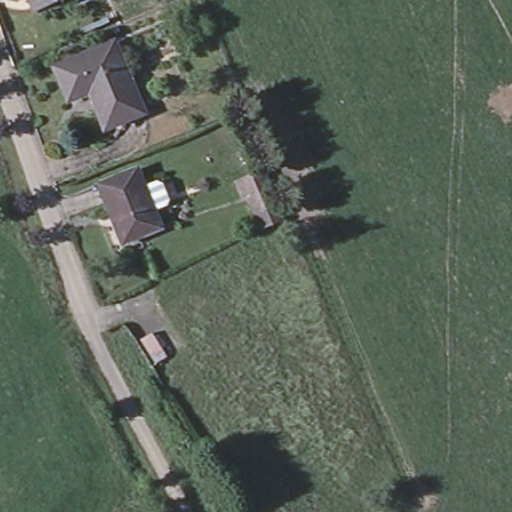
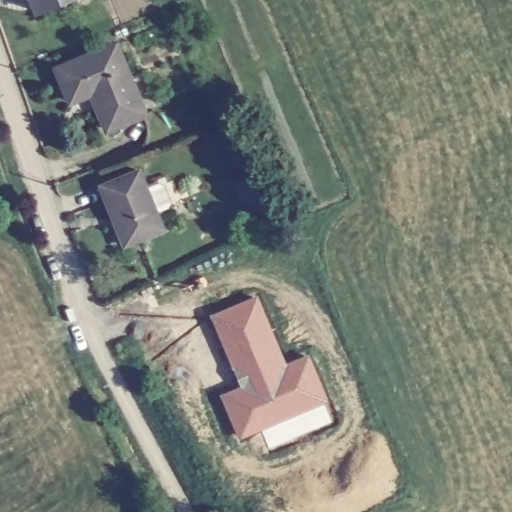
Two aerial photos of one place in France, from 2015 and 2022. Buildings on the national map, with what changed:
unchanged [(30,6),(28,0),(44,0),(30,6)]
unchanged [(140,108),(101,124),(87,88),(66,96),(52,64),(111,40),(140,108)]
unchanged [(155,176),(160,178),(167,195),(164,200),(152,206),(158,223),(120,238),(97,180),(135,165),(142,181),(155,176)]
unchanged [(262,231),(257,218),(248,198),(242,200),(237,186),(262,174),(277,209),(282,221),(262,231)]
new [(285,369),(309,360),(327,403),(240,439),(222,397),(245,388),(214,318),(256,299),(285,369)]

